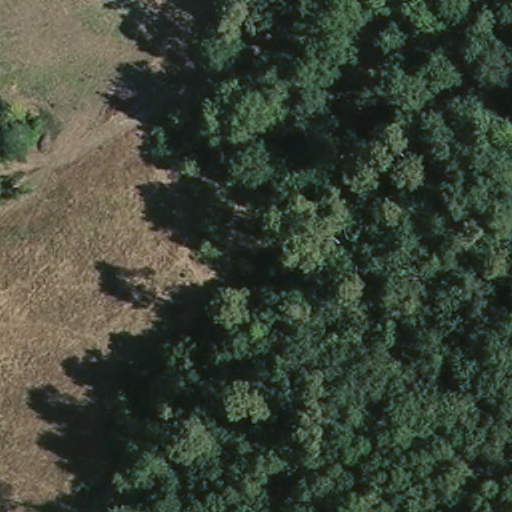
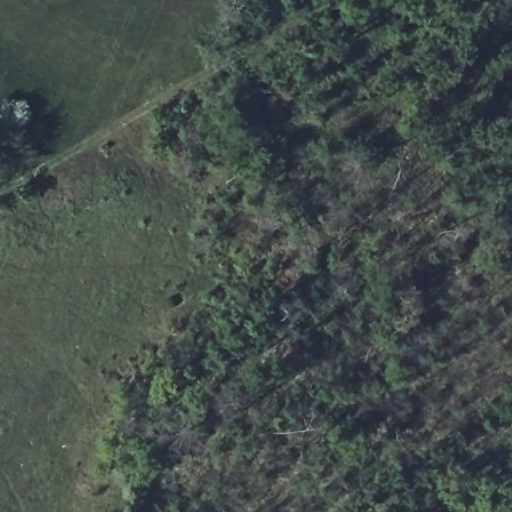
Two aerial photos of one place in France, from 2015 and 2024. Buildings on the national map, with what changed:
[]

